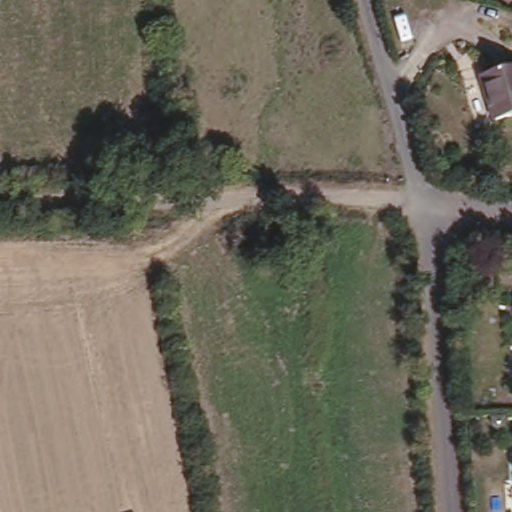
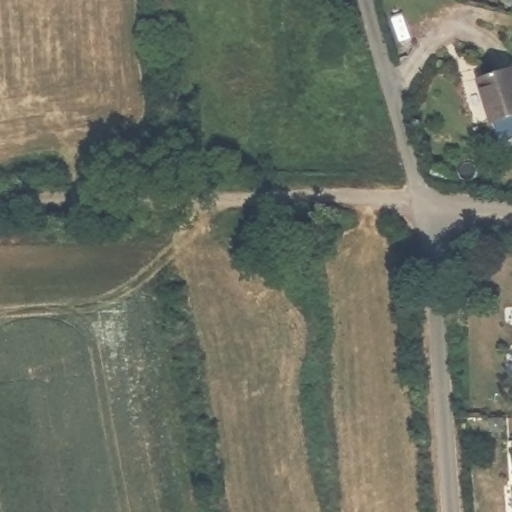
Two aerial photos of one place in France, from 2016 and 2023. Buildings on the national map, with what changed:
unchanged [(512,67),(512,114),(500,118),(486,75),(512,67)]

